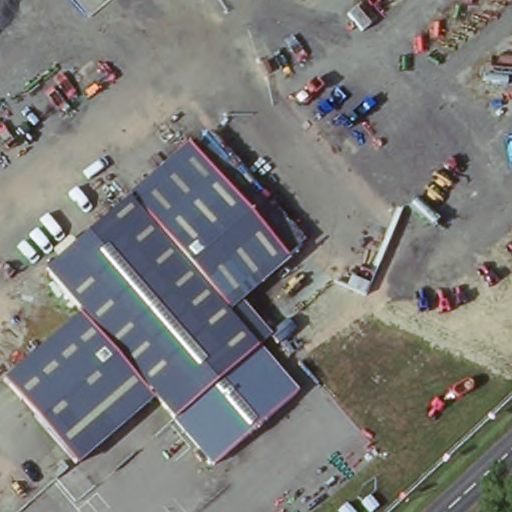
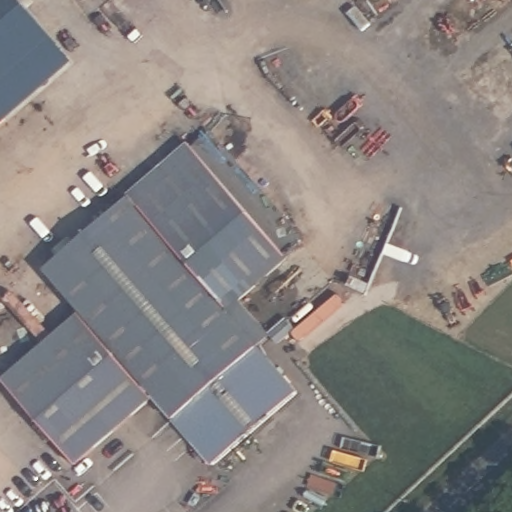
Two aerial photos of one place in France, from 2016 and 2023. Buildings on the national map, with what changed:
new [(70,57),(0,119),(0,0),(22,0),(70,57)]
unchanged [(309,243),(245,301),(275,336),(263,347),(302,396),(212,472),(155,402),(75,467),(0,377),(80,312),(42,266),(211,130),(309,243)]

